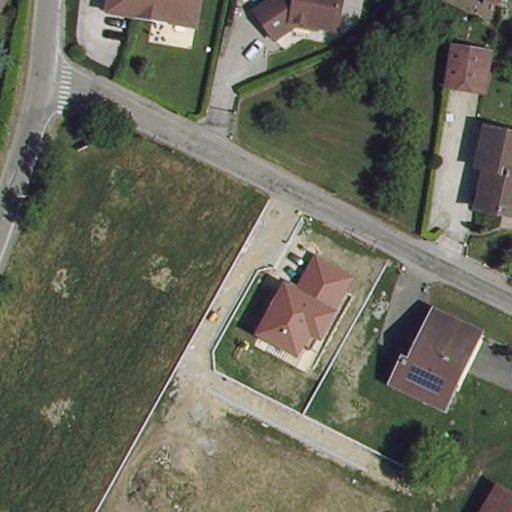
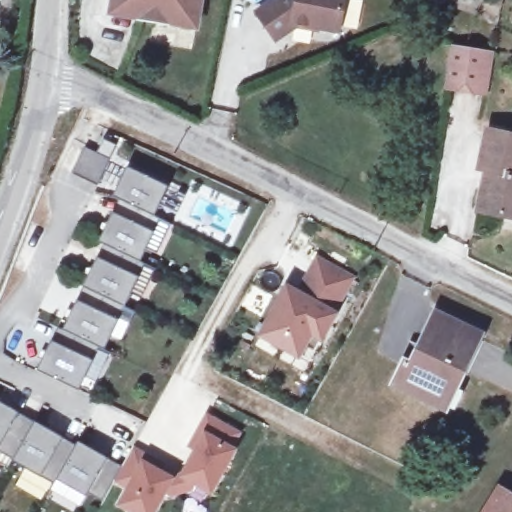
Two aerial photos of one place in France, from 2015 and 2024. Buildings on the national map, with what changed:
unchanged [(133,15),(115,12),(116,2),(116,0),(203,0),(200,17),(199,26),(173,21),(133,15)]
unchanged [(332,37),(288,27),(286,33),(270,44),(252,17),(277,0),(340,0),(332,37)]
unchanged [(501,8),(487,5),(487,0),(503,0),(501,8)]
unchanged [(486,91),(449,85),(455,46),(494,52),(486,91)]
unchanged [(480,213),(489,174),(480,172),(489,135),(512,139),(512,219),(480,213)]
new [(106,159),(95,185),(71,173),(84,148),(106,159)]
new [(169,182),(156,211),(162,215),(141,257),(146,260),(105,346),(101,342),(80,386),(40,365),(58,323),(65,326),(105,241),(101,238),(122,195),(115,193),(129,163),(169,182)]
unchanged [(354,278),(320,344),(315,342),(303,361),(255,336),(286,283),(299,290),(316,256),(354,278)]
unchanged [(442,410),(391,385),(402,363),(410,367),(434,317),(476,337),(442,410)]
new [(77,441),(79,437),(123,462),(116,475),(102,497),(89,490),(87,494),(57,476),(55,481),(15,454),(14,456),(0,448),(0,396),(77,441)]
new [(159,468),(145,460),(171,475),(185,472),(207,433),(201,429),(210,413),(240,431),(232,446),(235,448),(212,488),(197,479),(194,485),(171,491),(165,488),(151,512),(142,512),(122,500),(131,484),(116,475),(123,462),(133,445),(149,454),(163,461),(159,468)]
new [(193,443),(201,429),(207,433),(199,447),(193,443)]
unchanged [(512,502),(512,512),(479,512),(493,490),(512,502)]

